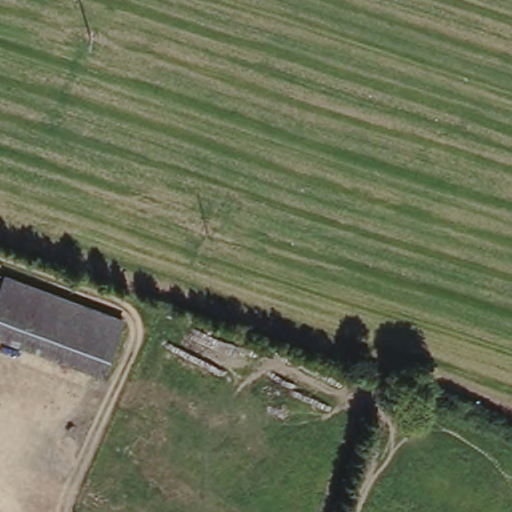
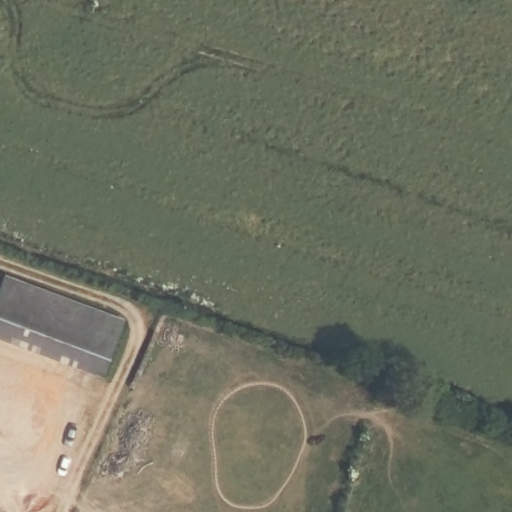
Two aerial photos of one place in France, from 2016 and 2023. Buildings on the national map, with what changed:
unchanged [(127,320),(107,375),(0,335),(0,299),(8,277),(127,320)]

